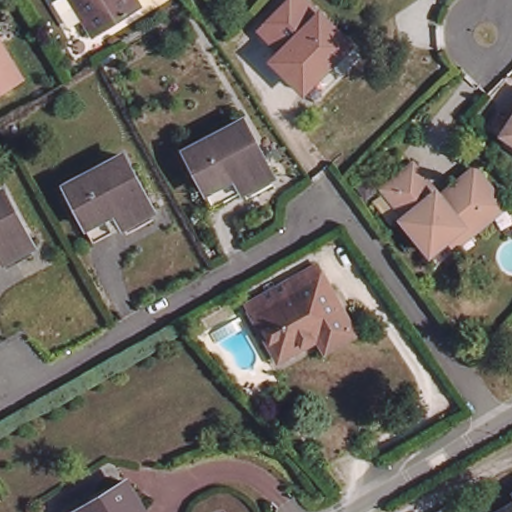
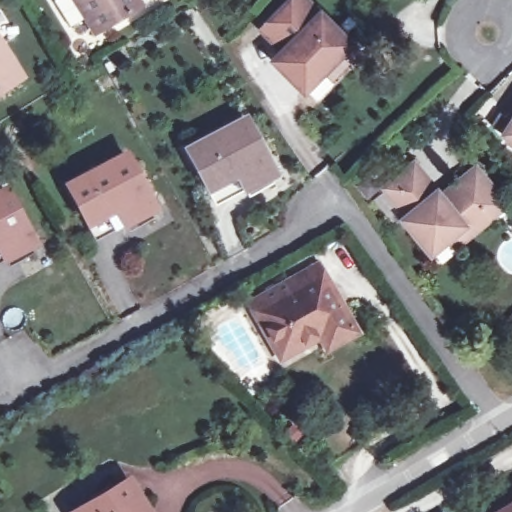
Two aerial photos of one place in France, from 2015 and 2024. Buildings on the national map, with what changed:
unchanged [(72,0),(138,0),(145,10),(97,40),(72,0)]
unchanged [(357,46),(305,95),(270,59),(280,51),(257,30),(286,0),(312,0),(321,8),(357,46)]
unchanged [(0,90),(0,34),(25,75),(0,90)]
unchanged [(207,184),(186,144),(245,114),(275,170),(253,181),(216,200),(207,184)]
unchanged [(505,114),(512,119),(512,136),(510,135),(509,136),(496,127),(505,114)]
unchanged [(93,219),(72,181),(130,150),(158,203),(138,214),(100,234),(93,219)]
unchanged [(433,254),(404,222),(410,217),(386,190),(413,166),(441,199),(450,192),(475,170),(504,201),(509,207),(495,218),(474,237),(460,249),(451,239),(433,254)]
unchanged [(6,246),(0,249),(0,181),(28,235),(6,246)]
unchanged [(326,349),(319,337),(280,360),(254,313),(321,274),(347,321),(355,333),(326,349)]
unchanged [(343,421),(359,446),(327,465),(312,439),(343,421)]
unchanged [(126,480),(146,512),(75,512),(126,480)]
unchanged [(512,508),(512,512),(505,512),(512,508)]

